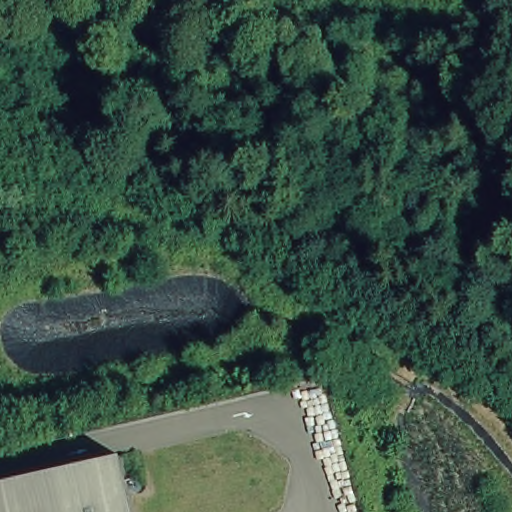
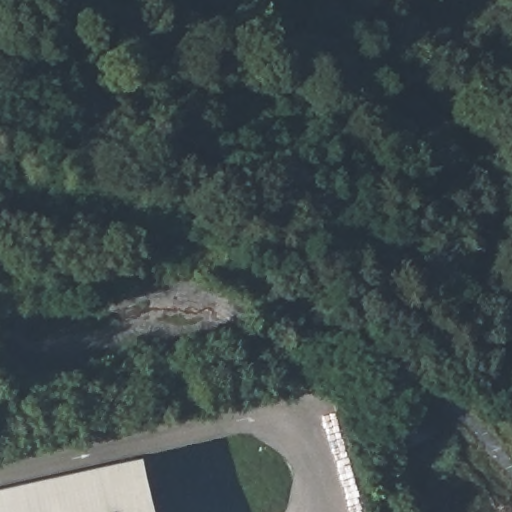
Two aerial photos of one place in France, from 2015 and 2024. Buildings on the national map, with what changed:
unchanged [(137,512),(0,512),(0,486),(125,457),(137,512)]

